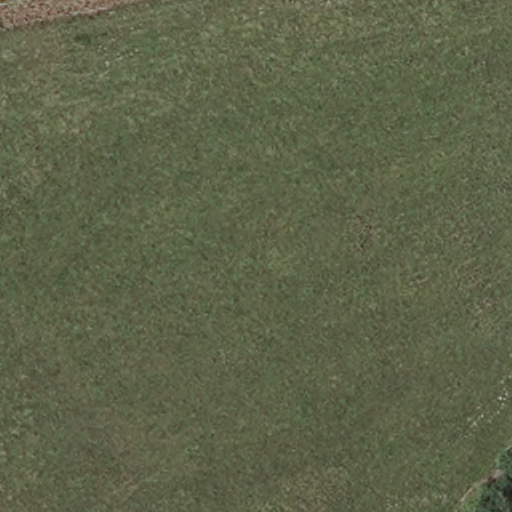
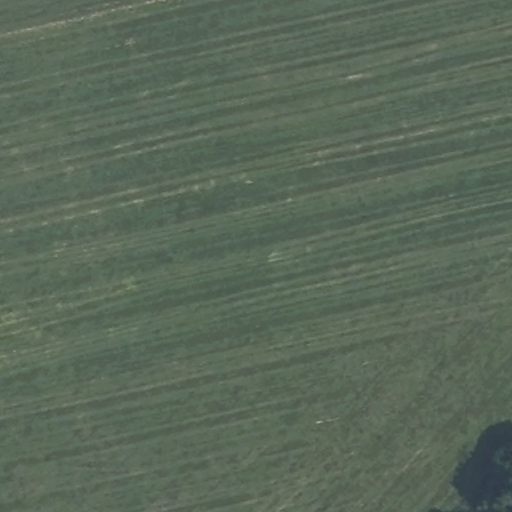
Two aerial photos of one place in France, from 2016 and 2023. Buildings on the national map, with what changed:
[]

